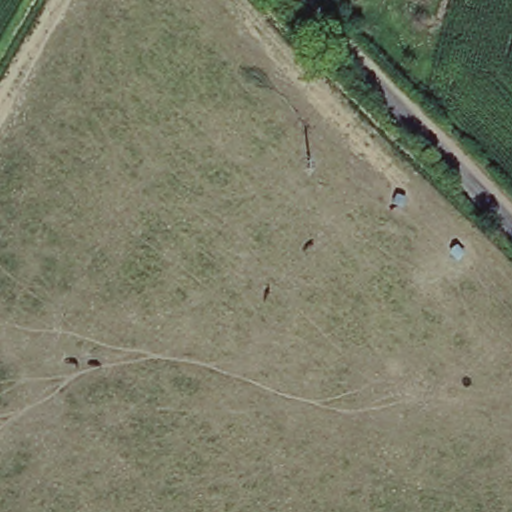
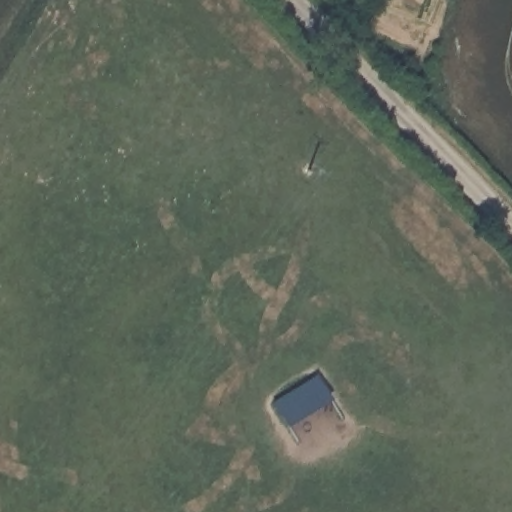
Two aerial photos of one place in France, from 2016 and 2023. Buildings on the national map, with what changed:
new [(317,378),(330,400),(289,424),(276,403),(317,378)]

